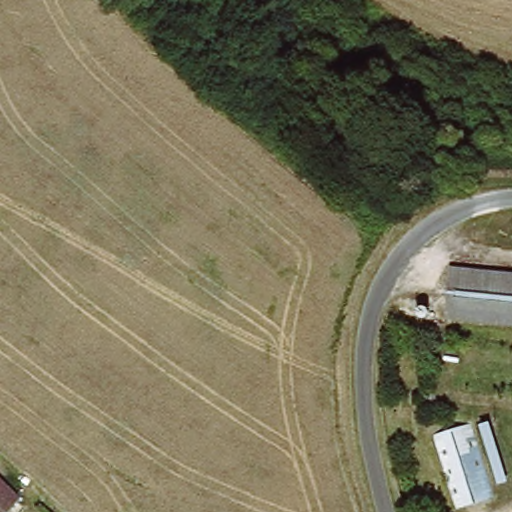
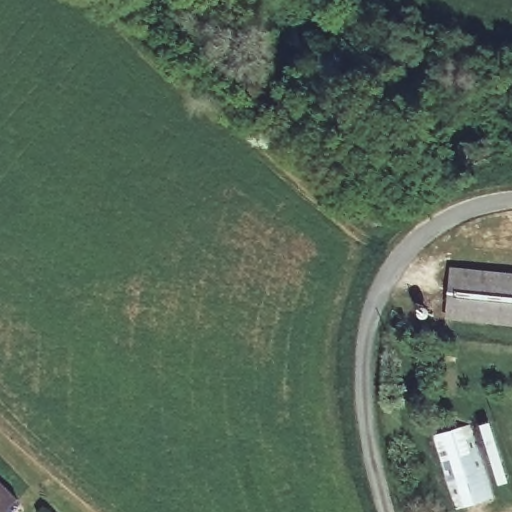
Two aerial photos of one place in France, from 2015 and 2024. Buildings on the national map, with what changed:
unchanged [(422,321),(423,303),(446,305),(451,269),(512,275),(512,330),(443,323),(422,321)]
unchanged [(493,503),(468,512),(456,512),(432,440),(467,426),(493,503)]
unchanged [(13,505),(5,512),(0,512),(0,491),(13,505)]

